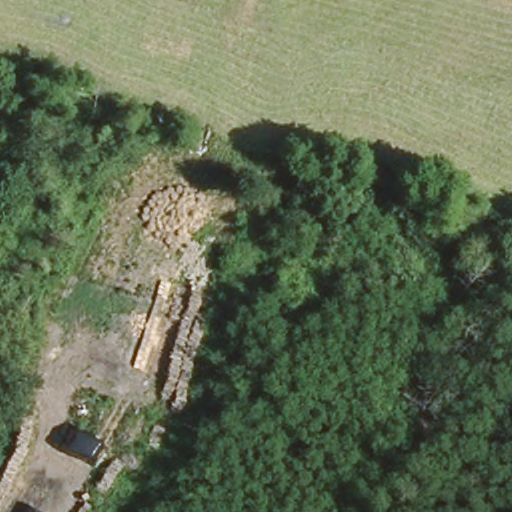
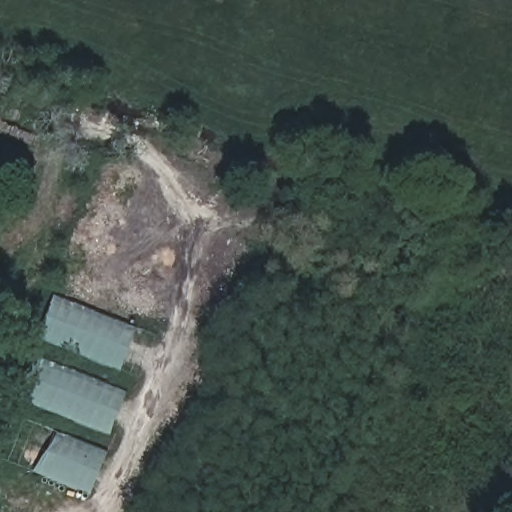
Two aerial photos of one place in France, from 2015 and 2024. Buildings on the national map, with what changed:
new [(135,329),(121,365),(41,334),(55,298),(135,329)]
new [(111,434),(17,397),(32,356),(125,392),(111,434)]
new [(89,495),(0,461),(0,446),(16,412),(107,451),(89,495)]

